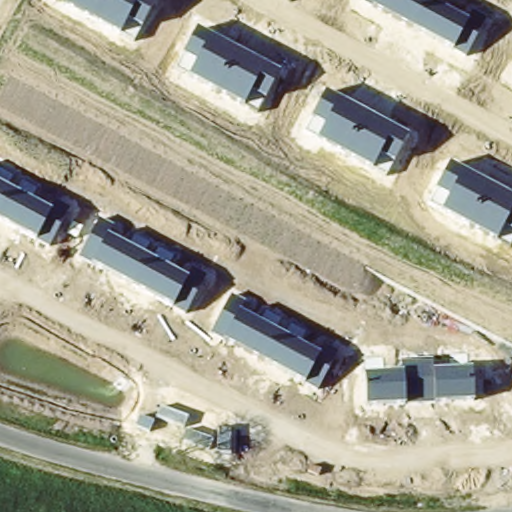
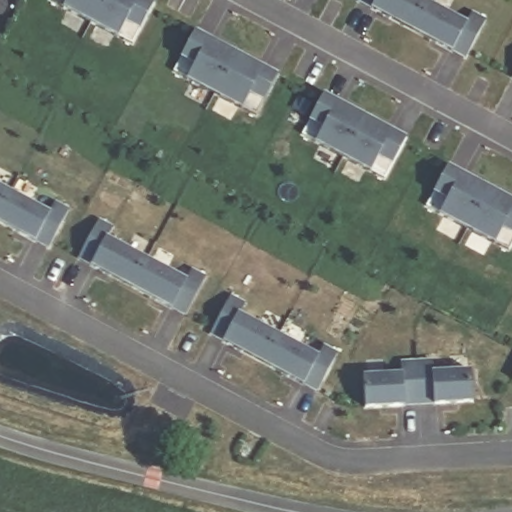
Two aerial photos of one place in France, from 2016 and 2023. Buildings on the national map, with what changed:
unchanged [(50,0),(149,0),(155,3),(132,45),(50,0)]
unchanged [(467,19),(474,10),(487,16),(467,58),(359,0),(432,0),(467,19)]
unchanged [(257,116),(175,73),(196,29),(280,74),(257,116)]
unchanged [(385,179),(302,135),(325,93),(408,135),(385,179)]
unchanged [(426,206),(448,165),(512,199),(512,247),(510,250),(426,206)]
unchanged [(0,222),(0,181),(49,208),(52,201),(69,210),(50,247),(0,222)]
unchanged [(77,257),(100,219),(114,227),(110,233),(186,275),(190,269),(206,278),(187,317),(77,257)]
unchanged [(231,293),(247,301),(241,311),(320,352),(325,345),(339,351),(317,392),(210,333),(231,293)]
unchanged [(362,374),(402,372),(402,362),(434,359),(434,370),(472,367),(474,400),(364,406),(362,374)]

